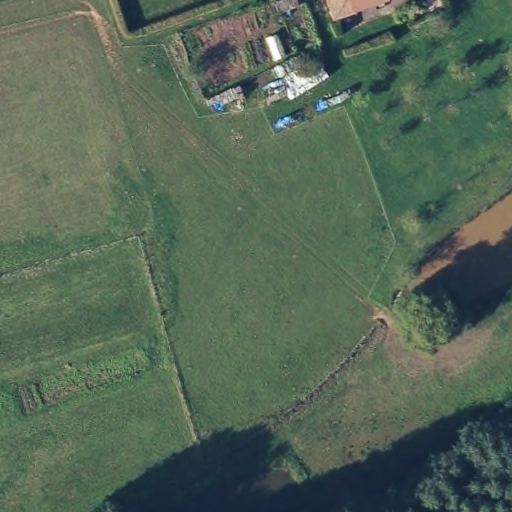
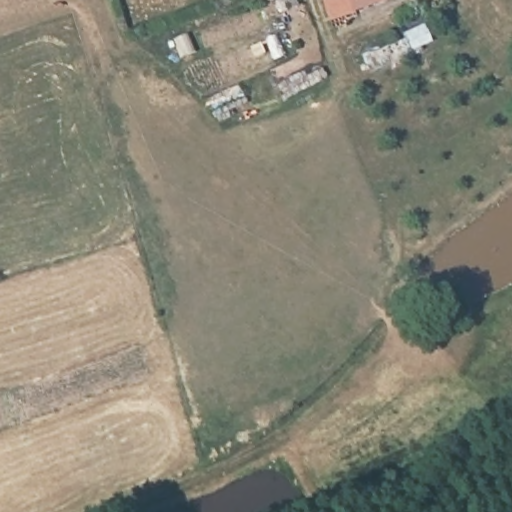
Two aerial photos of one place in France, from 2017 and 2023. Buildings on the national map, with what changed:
unchanged [(358,5),(335,13),(331,0),(371,0),(358,5)]

